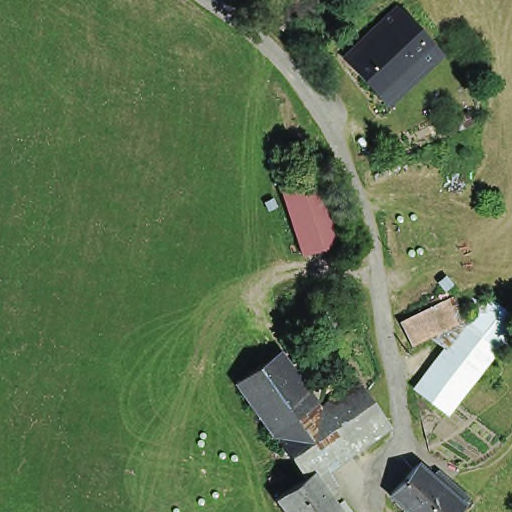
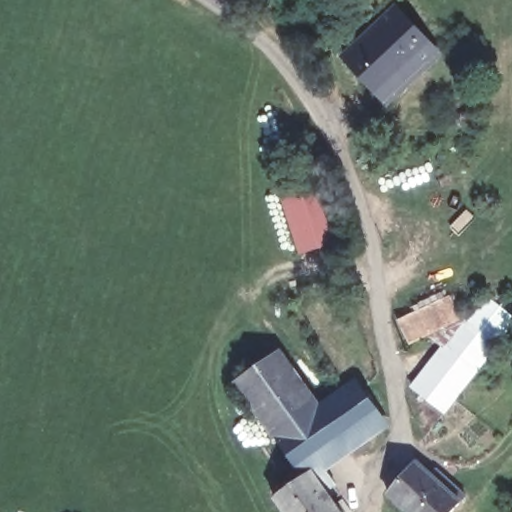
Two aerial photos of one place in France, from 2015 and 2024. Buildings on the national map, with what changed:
unchanged [(381,35),(397,21),(398,19),(403,25),(437,60),(420,76),(381,37),(380,36),(381,35)]
unchanged [(350,64),(351,64),(380,36),(381,37),(420,76),(384,111),(346,69),(350,64)]
unchanged [(302,259),(280,191),(298,185),(316,179),(320,179),(341,245),(340,245),(302,259)]
unchanged [(400,334),(395,325),(398,323),(453,294),(466,317),(449,325),(408,348),(400,334)]
unchanged [(409,389),(460,324),(492,349),(441,414),(409,389)]
unchanged [(305,484),(262,424),(237,389),(280,359),(305,392),(315,408),(320,414),(346,395),(358,387),(383,424),(372,433),(345,452),(320,469),(332,486),(323,493),(331,503),(338,512),(280,512),(275,506),(305,484)]
unchanged [(406,508),(404,506),(401,504),(390,494),(397,484),(416,461),(419,464),(428,474),(430,474),(437,472),(467,500),(463,504),(456,512),(411,512),(406,508)]

